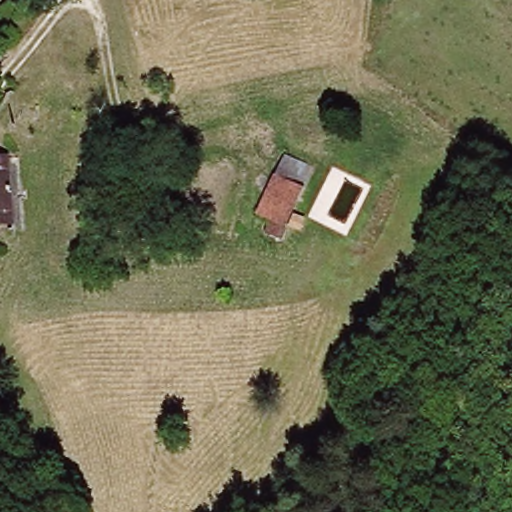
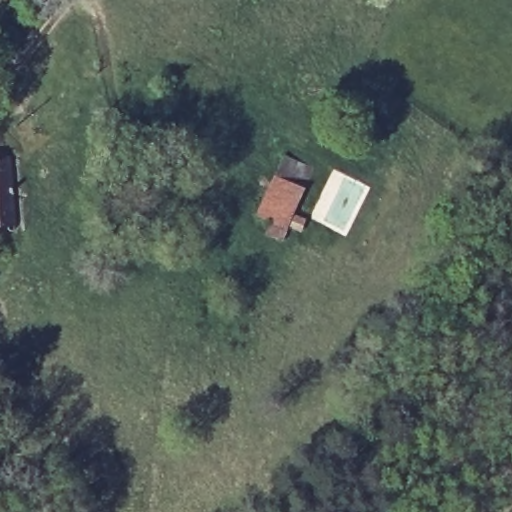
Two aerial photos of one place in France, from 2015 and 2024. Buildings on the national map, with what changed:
unchanged [(0,219),(0,153),(15,157),(0,219)]
unchanged [(299,192),(279,244),(253,234),(273,182),(299,192)]

